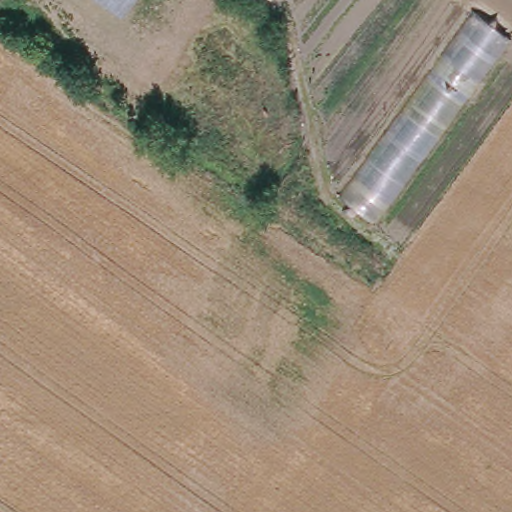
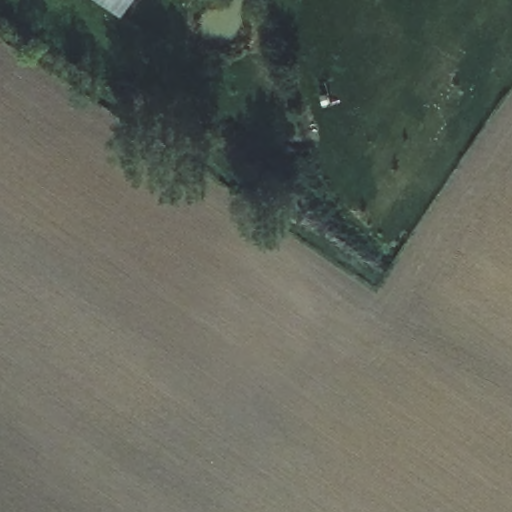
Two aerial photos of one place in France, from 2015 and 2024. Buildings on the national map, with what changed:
unchanged [(103,0),(134,0),(123,15),(103,0)]
demolished [(468,19),(508,46),(380,214),(343,190),(468,19)]

